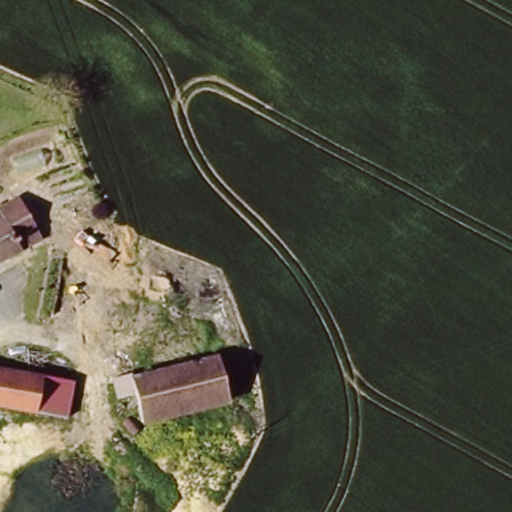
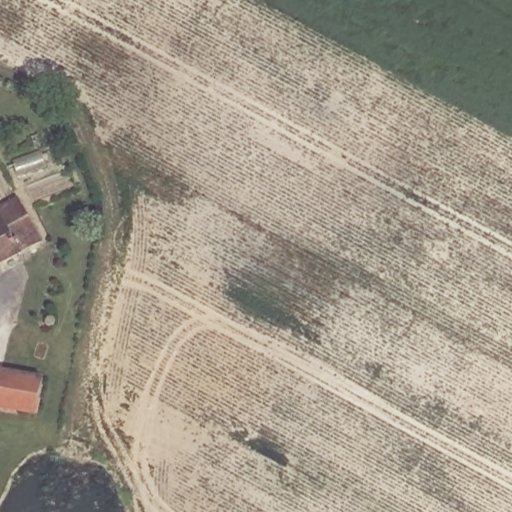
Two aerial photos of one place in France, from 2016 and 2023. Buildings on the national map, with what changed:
unchanged [(25,204),(45,241),(0,265),(0,216),(25,204)]
demolished [(224,363),(230,408),(165,417),(157,371),(224,363)]
unchanged [(82,388),(72,423),(38,416),(0,409),(0,367),(82,388)]
demolished [(157,371),(165,417),(142,421),(139,401),(107,405),(105,378),(157,371)]

